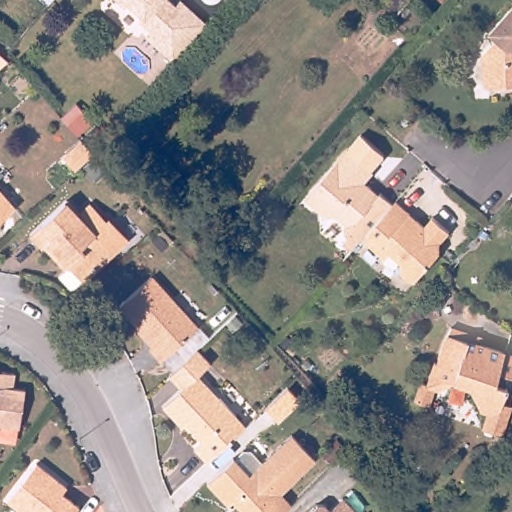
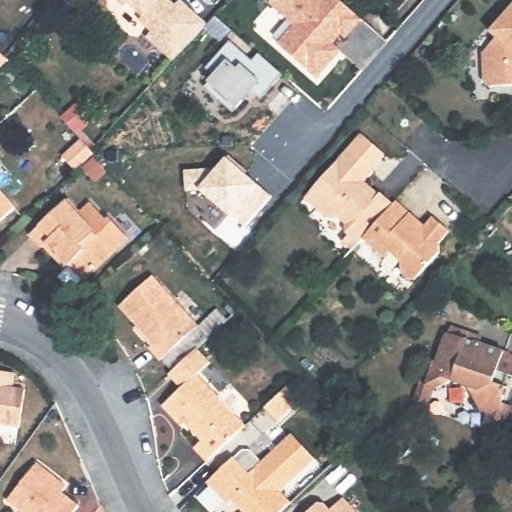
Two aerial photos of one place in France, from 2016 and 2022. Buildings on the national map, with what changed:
unchanged [(153,32),(140,21),(144,17),(129,4),(125,7),(117,0),(169,0),(176,7),(181,1),(196,15),(208,25),(174,62),(163,52),(147,38),(153,32)]
new [(318,78),(280,45),(297,26),(272,4),(276,0),(339,0),(363,21),(347,39),(342,35),(333,46),(341,52),(333,61),(318,78)]
unchanged [(411,0),(397,14),(383,0),(411,0)]
unchanged [(486,81),(483,53),(497,37),(491,31),(512,6),(512,85),(492,86),(486,81)]
new [(206,83),(211,77),(204,69),(228,42),(251,61),(256,55),(279,76),(258,101),(249,93),(235,109),(234,107),(230,113),(202,88),(206,83)]
unchanged [(92,153),(84,163),(75,172),(62,157),(72,149),(81,140),(92,153)]
unchanged [(347,240),(352,233),(350,231),(350,222),(340,212),(331,214),(310,195),(352,147),(378,169),(369,179),(375,185),(370,191),(377,198),(385,190),(398,202),(367,237),(357,249),(347,240)]
new [(215,170),(226,158),(257,186),(270,197),(243,229),(228,219),(197,192),(184,192),(182,171),(215,170)]
unchanged [(14,207),(0,220),(0,190),(14,207)]
unchanged [(422,217),(428,224),(437,214),(453,229),(443,241),(442,251),(418,278),(410,276),(405,271),(405,262),(393,251),(388,256),(367,237),(398,202),(400,199),(414,211),(422,217)]
unchanged [(81,212),(92,201),(109,219),(111,216),(131,237),(87,279),(68,260),(66,262),(49,245),(45,248),(34,236),(71,201),(81,212)]
unchanged [(159,358),(146,345),(151,340),(119,302),(149,276),(195,326),(159,358)]
unchanged [(429,382),(437,358),(440,358),(448,337),(457,325),(487,337),(485,343),(512,354),(512,374),(502,371),(497,383),(510,388),(504,403),(512,406),(512,412),(503,436),(484,428),(490,412),(482,409),(473,385),(458,379),(442,387),(437,386),(430,403),(415,397),(421,379),(429,382)]
unchanged [(215,361),(202,373),(251,424),(212,461),(199,447),(207,439),(184,415),(181,418),(167,405),(186,387),(174,373),(201,347),(215,361)]
unchanged [(0,427),(0,430),(0,388),(29,392),(24,428),(0,427)]
new [(287,392),(300,406),(277,427),(264,413),(287,392)]
unchanged [(249,512),(235,497),(227,503),(206,480),(231,457),(234,459),(243,451),(251,450),(262,462),(292,435),(313,458),(279,491),(290,502),(280,512),(248,512),(249,512)]
unchanged [(12,501),(42,463),(71,484),(65,493),(82,505),(77,512),(26,512),(12,501)]
unchanged [(319,506),(330,505),(334,510),(347,500),(358,512),(313,512),(319,506)]

